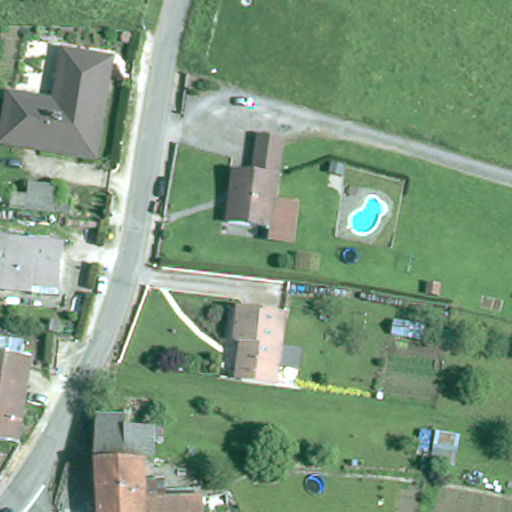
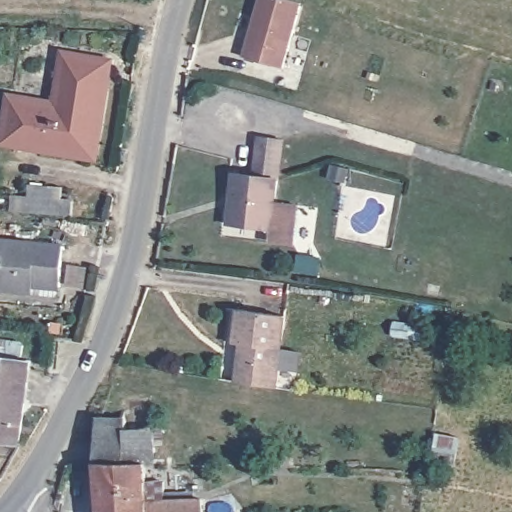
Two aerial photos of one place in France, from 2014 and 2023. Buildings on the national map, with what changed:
new [(283,66),(243,55),(258,0),(293,0),(302,2),(283,66)]
unchanged [(0,142),(0,139),(7,98),(53,105),(61,54),(105,62),(89,157),(0,142)]
unchanged [(288,141),(283,181),(274,180),(253,176),(258,141),(288,141)]
unchanged [(274,182),(271,203),(267,231),(226,225),(233,173),(253,176),(274,180),(274,182)]
unchanged [(61,215),(27,212),(11,211),(13,196),(28,197),(29,184),(63,186),(63,200),(74,201),(73,216),(61,215)]
unchanged [(271,203),(301,206),(298,249),(269,246),(271,232),(267,231),(271,203)]
unchanged [(60,292),(33,290),(33,286),(0,283),(0,235),(64,240),(60,292)]
unchanged [(243,345),(236,344),(240,309),(285,315),(276,386),(241,381),(238,380),(243,345)]
unchanged [(0,356),(32,361),(18,446),(0,444),(0,356)]
unchanged [(96,435),(98,415),(99,414),(124,416),(125,425),(149,425),(149,423),(161,423),(162,439),(153,439),(153,461),(146,461),(146,477),(163,477),(164,495),(201,493),(203,512),(100,512),(96,435)]

